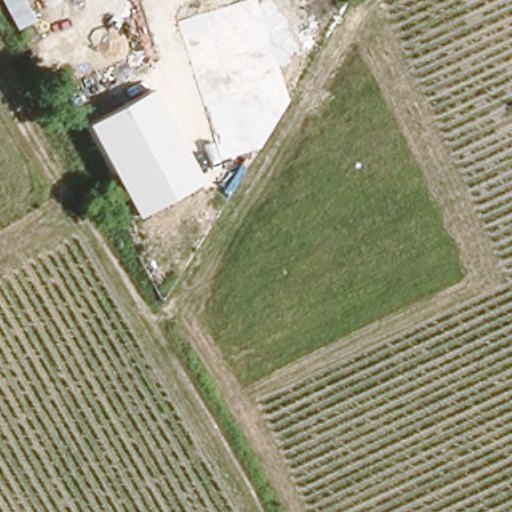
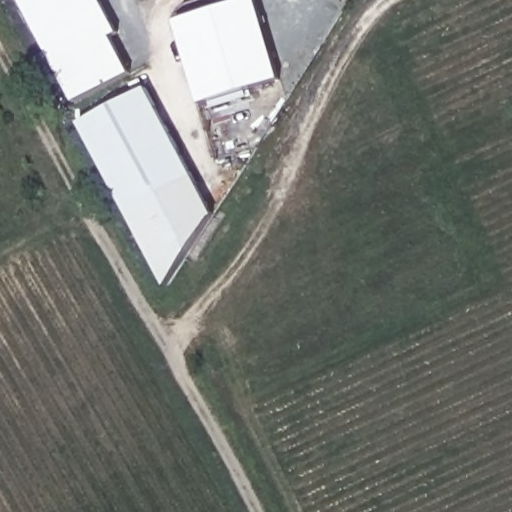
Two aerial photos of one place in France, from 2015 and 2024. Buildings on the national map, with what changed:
new [(23,0),(101,0),(119,33),(112,36),(134,74),(78,103),(23,0)]
new [(252,0),(282,89),(204,116),(170,19),(227,0),(252,0)]
unchanged [(197,181),(131,218),(80,123),(147,89),(197,181)]
new [(170,287),(131,218),(197,181),(216,217),(170,287)]

